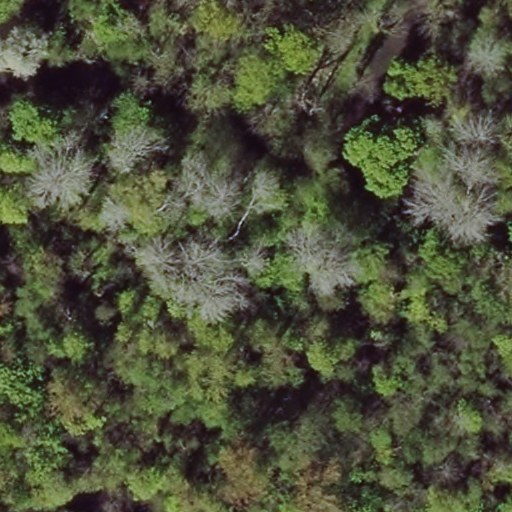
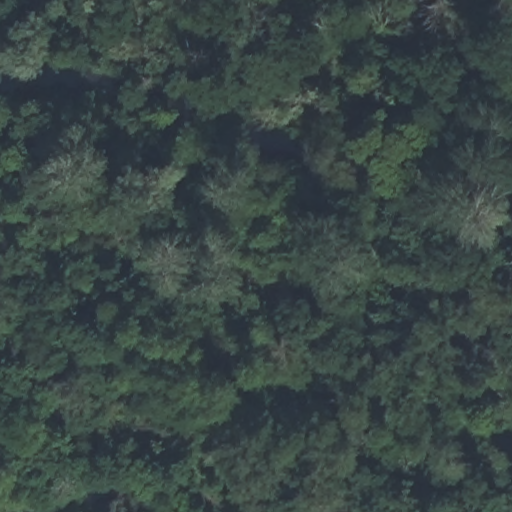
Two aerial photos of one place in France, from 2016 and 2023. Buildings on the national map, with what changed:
[]

